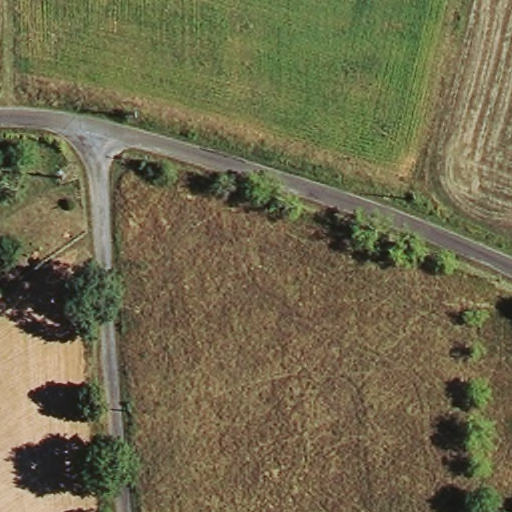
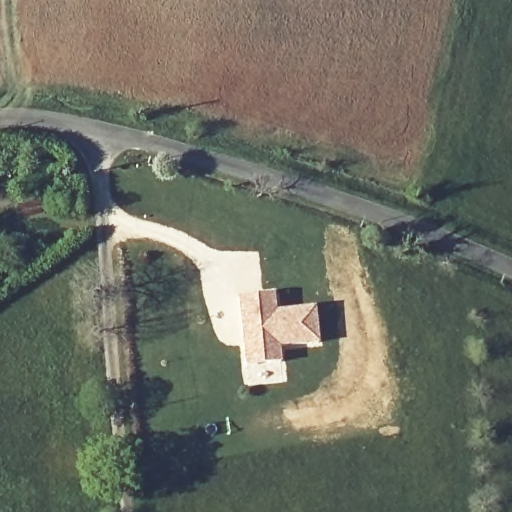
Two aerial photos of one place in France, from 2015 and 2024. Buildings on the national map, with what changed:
new [(275,292),(277,310),(317,306),(322,344),(281,349),(283,363),(265,365),(257,295),(275,292)]
new [(257,295),(265,365),(268,382),(244,385),(237,298),(257,295)]

